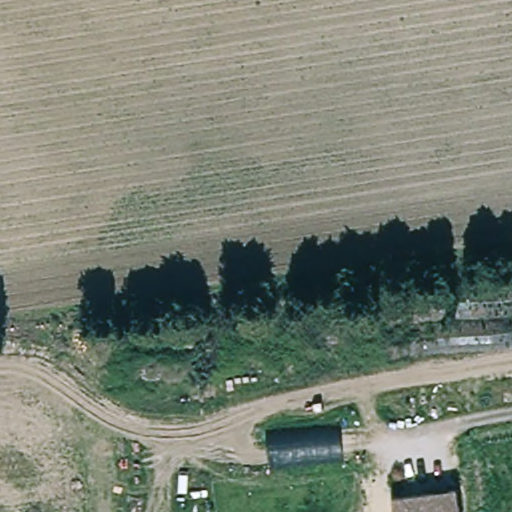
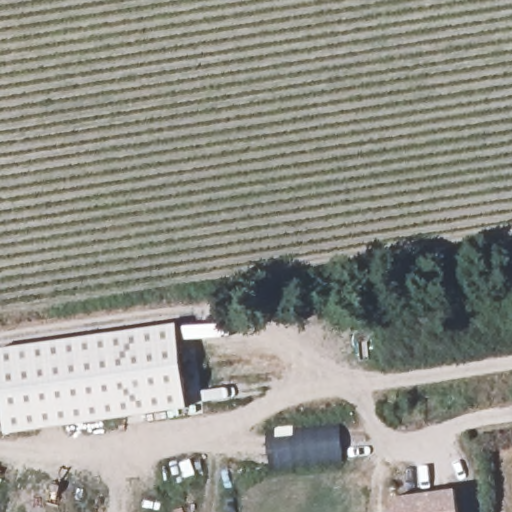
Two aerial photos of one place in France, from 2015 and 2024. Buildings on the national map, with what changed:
demolished [(387,364),(378,315),(512,294),(512,346),(387,364)]
new [(5,434),(0,394),(0,349),(176,325),(188,409),(5,434)]
unchanged [(343,462),(269,469),(266,433),(340,423),(343,462)]
unchanged [(388,502),(452,491),(456,512),(390,512),(388,502)]

